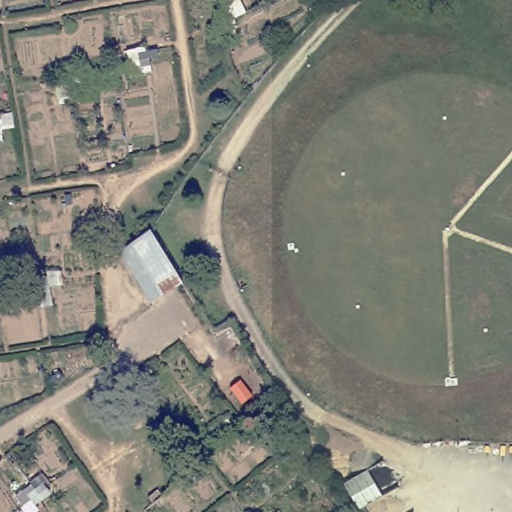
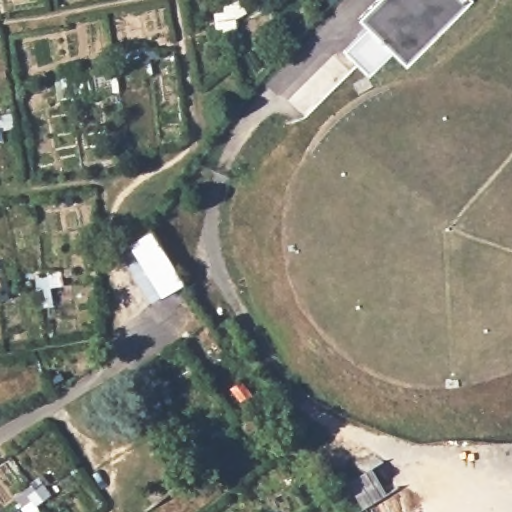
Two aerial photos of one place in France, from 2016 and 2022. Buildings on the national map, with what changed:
new [(356,17),(373,0),(463,0),(467,4),(405,65),(393,54),(371,76),(344,50),(367,27),(356,17)]
unchanged [(130,75),(128,62),(126,49),(139,47),(152,45),(154,57),(141,60),(143,72),(130,75)]
unchanged [(51,89),(49,76),(62,74),(64,86),(77,85),(79,97),(66,100),(53,101),(51,89)]
unchanged [(1,108),(2,120),(5,134),(0,134),(0,108),(1,108)]
unchanged [(152,230),(155,235),(184,283),(157,300),(126,249),(152,230)]
unchanged [(39,322),(37,310),(24,311),(22,299),(35,296),(48,295),(50,307),(52,320),(39,322)]
unchanged [(202,440),(212,432),(205,421),(215,413),(222,424),(231,435),(220,442),(210,450),(202,440)]
unchanged [(36,510),(27,500),(20,489),(30,481),(41,473),(49,483),(38,491),(46,502),(36,510)]

